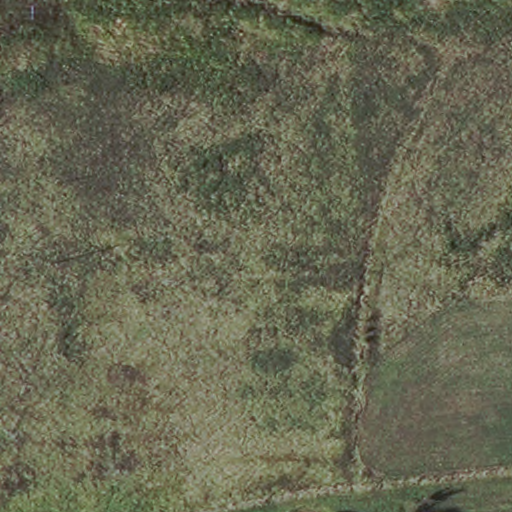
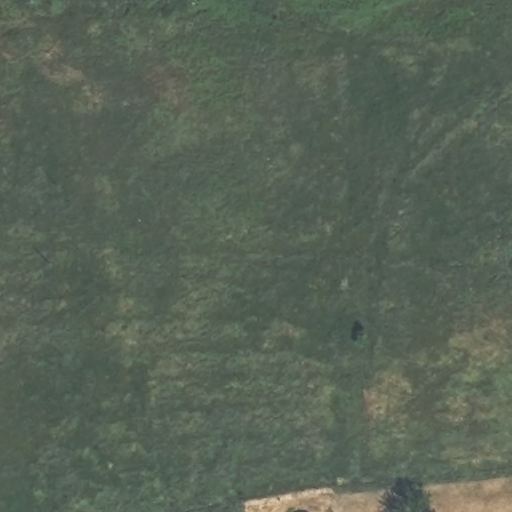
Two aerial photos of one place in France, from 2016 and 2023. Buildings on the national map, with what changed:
[]

